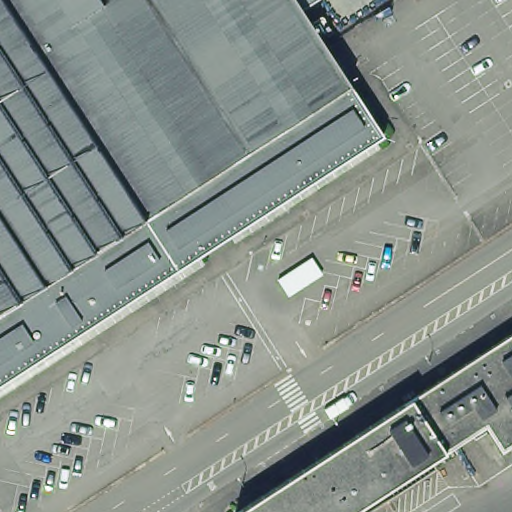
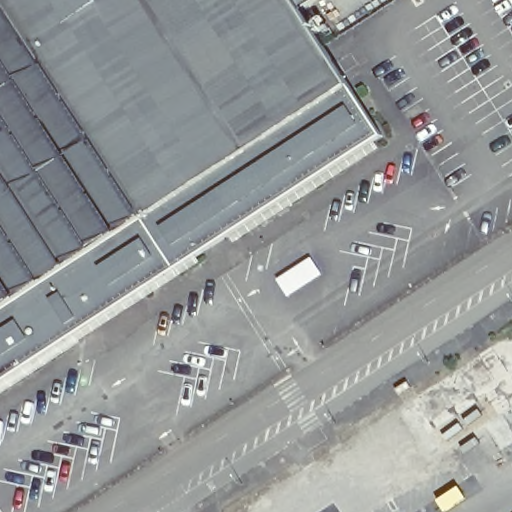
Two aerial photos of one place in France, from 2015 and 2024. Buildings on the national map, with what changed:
unchanged [(0,381),(0,0),(291,0),(346,86),(380,140),(0,381)]
unchanged [(304,15),(295,0),(325,0),(304,15)]
demolished [(512,335),(512,414),(488,429),(405,481),(370,423),(512,335)]
demolished [(512,414),(512,443),(502,450),(488,429),(512,414)]
demolished [(354,512),(226,512),(370,423),(405,481),(354,512)]

